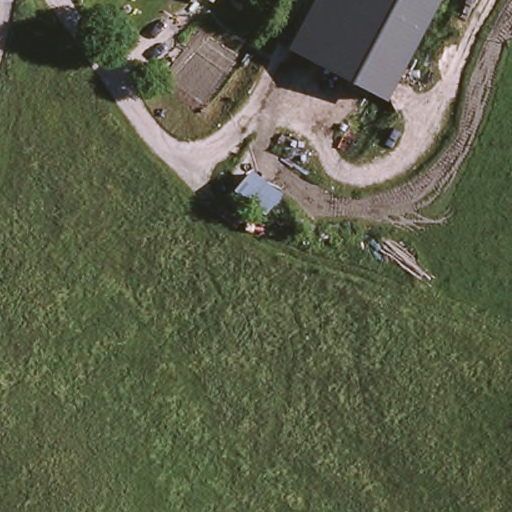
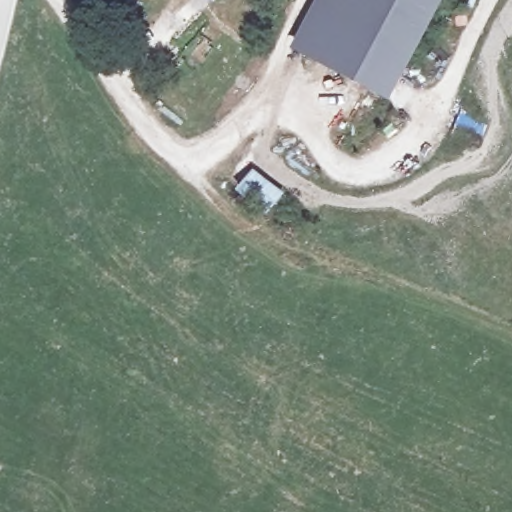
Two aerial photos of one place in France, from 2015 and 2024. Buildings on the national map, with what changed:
unchanged [(370,94),(284,49),(309,0),(426,0),(375,98),(370,94)]
unchanged [(289,194),(270,216),(241,194),(259,173),(289,194)]

